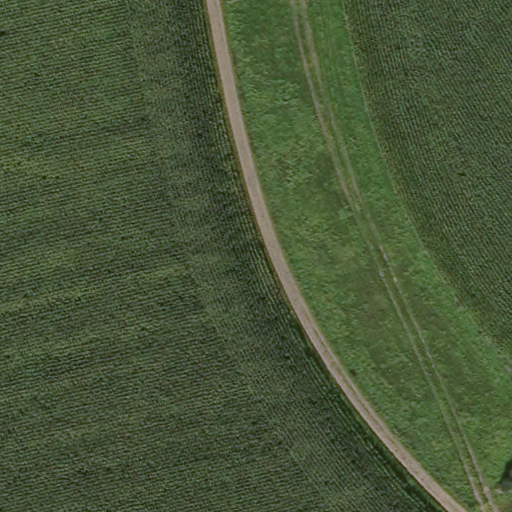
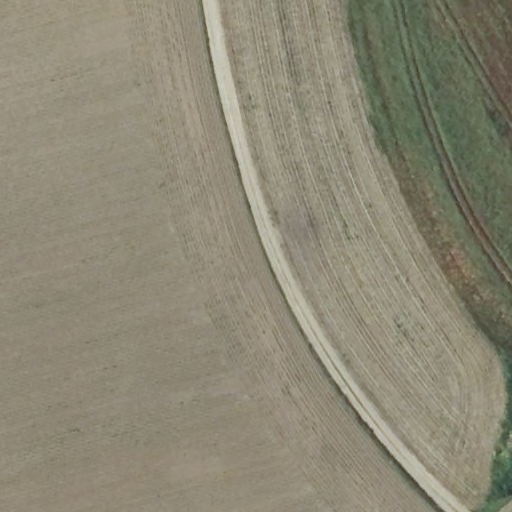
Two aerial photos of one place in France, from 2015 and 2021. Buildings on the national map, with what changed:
[]

